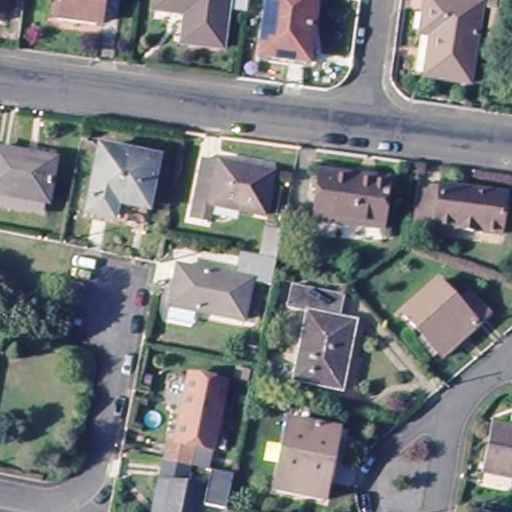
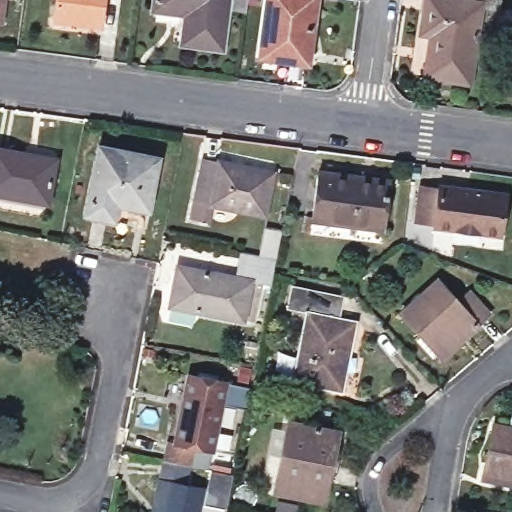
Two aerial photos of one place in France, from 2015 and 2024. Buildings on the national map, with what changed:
unchanged [(0,24),(0,0),(9,0),(5,25),(0,24)]
unchanged [(56,23),(60,0),(106,0),(101,29),(56,23)]
unchanged [(222,17),(217,53),(178,47),(181,20),(150,14),(152,0),(246,0),(244,21),(222,17)]
unchanged [(259,59),(267,0),(315,0),(305,66),(259,59)]
unchanged [(471,85),(427,78),(433,38),(431,35),(423,34),(427,0),(454,0),(483,5),(471,85)]
unchanged [(454,0),(483,0),(483,5),(454,0)]
unchanged [(110,213),(84,207),(99,142),(158,154),(145,202),(127,199),(124,216),(110,213)]
unchanged [(46,203),(0,195),(0,148),(57,159),(46,203)]
unchanged [(200,162),(270,176),(263,217),(192,204),(200,162)]
unchanged [(386,183),(380,231),(310,222),(317,174),(386,183)]
unchanged [(508,239),(444,230),(444,226),(426,223),(431,189),(449,192),(450,187),(512,196),(512,210),(508,239)]
unchanged [(247,285),(239,323),(169,311),(177,268),(233,280),(239,255),(249,257),(254,225),(274,229),(269,261),(273,262),(271,271),(268,287),(247,285)]
unchanged [(444,282),(462,302),(473,294),(492,315),(444,357),(441,354),(436,358),(420,341),(424,337),(408,315),(444,282)]
unchanged [(345,297),(340,320),(357,322),(343,390),(294,381),(308,312),(287,308),(292,286),(345,297)]
unchanged [(168,442),(179,445),(192,377),(229,384),(215,452),(195,447),(191,470),(164,463),(168,442)]
unchanged [(335,432),(322,502),(270,492),(285,422),(335,432)]
unchanged [(483,469),(490,429),(512,433),(512,482),(482,477),(483,469)]
unchanged [(160,482),(164,463),(191,470),(188,486),(208,490),(203,512),(154,512),(160,482)]
unchanged [(229,511),(234,512),(228,512),(229,511)]

